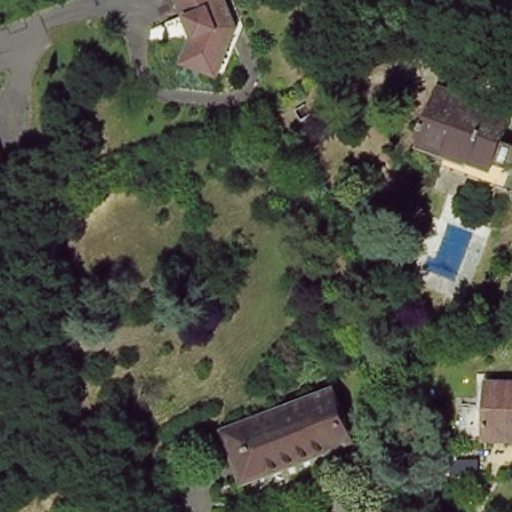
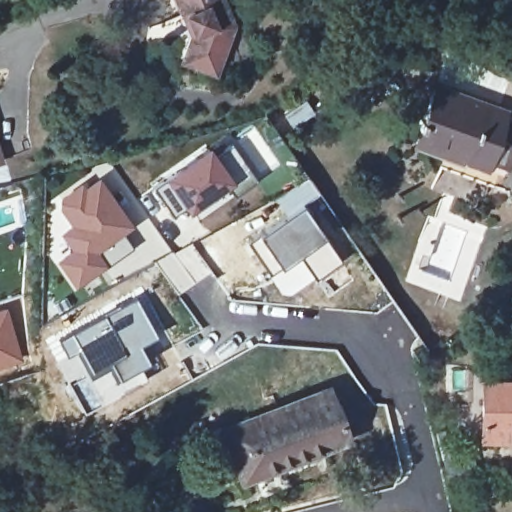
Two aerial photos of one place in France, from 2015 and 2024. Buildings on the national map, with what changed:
unchanged [(188,55),(196,35),(201,34),(193,14),(189,16),(182,0),(230,0),(240,25),(224,69),(222,74),(186,61),(188,55)]
unchanged [(495,154),(492,163),(422,138),(443,81),(512,107),(512,109),(502,136),(512,140),(512,161),(495,154)]
new [(304,97),(315,116),(293,130),(281,113),(304,97)]
new [(232,143),(251,172),(235,183),(174,218),(150,184),(208,143),(216,154),(232,143)]
unchanged [(0,163),(0,153),(3,162),(0,163)]
new [(87,176),(89,178),(97,173),(136,225),(124,234),(134,248),(74,287),(56,260),(70,250),(58,231),(68,223),(54,201),(87,176)]
new [(313,279),(283,297),(269,276),(244,243),(257,233),(285,215),(274,199),(307,175),(320,194),(304,204),(325,237),(340,261),(313,279)]
new [(103,404),(85,413),(68,385),(45,340),(134,294),(155,335),(138,344),(148,361),(139,366),(146,379),(103,404)]
new [(24,359),(0,367),(0,312),(8,309),(24,359)]
unchanged [(497,429),(472,429),(473,393),(498,394),(499,372),(512,372),(512,430),(497,429)]
unchanged [(224,431),(330,389),(350,439),(243,480),(224,431)]

